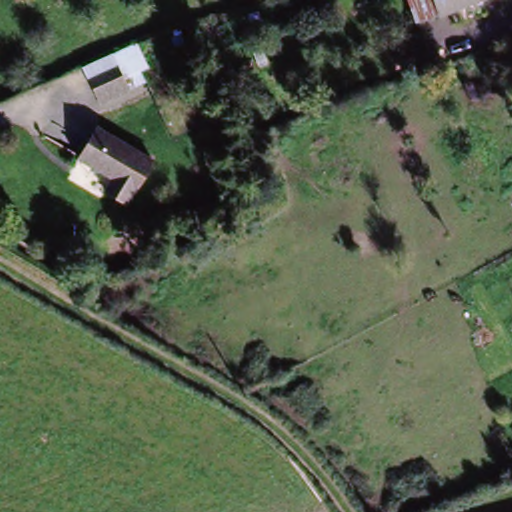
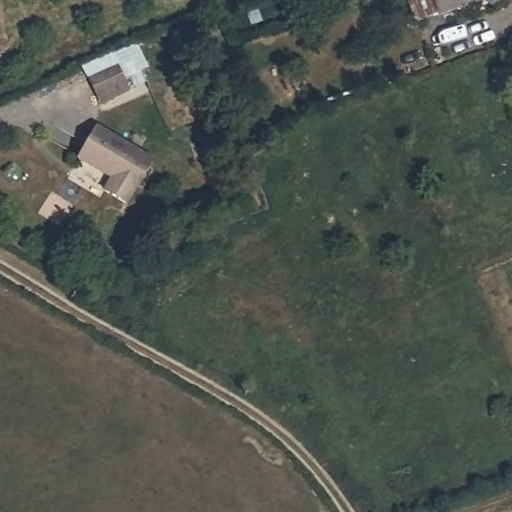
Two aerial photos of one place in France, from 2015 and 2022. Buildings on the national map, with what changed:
unchanged [(444,0),(413,12),(408,0),(444,0)]
unchanged [(132,86),(106,97),(95,70),(121,60),(132,86)]
unchanged [(156,155),(130,200),(102,184),(109,172),(80,155),(99,122),(156,155)]

